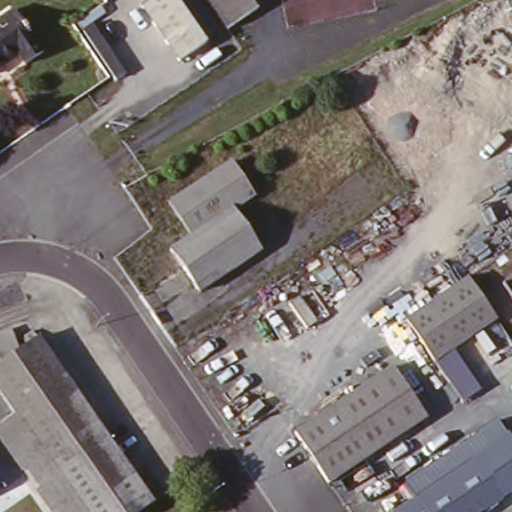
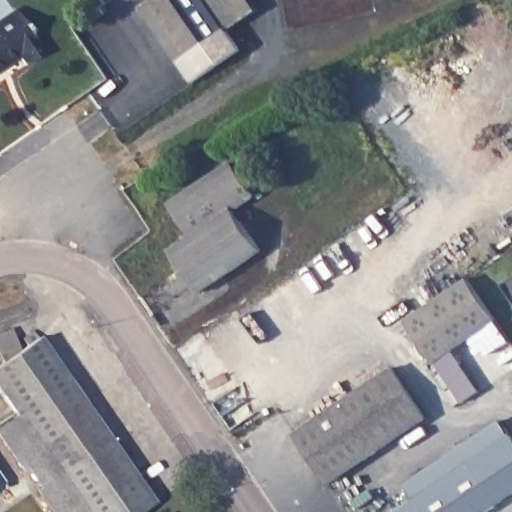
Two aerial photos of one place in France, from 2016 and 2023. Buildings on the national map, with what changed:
unchanged [(141,0),(197,0),(217,32),(205,40),(179,57),(140,1),(141,0)]
unchanged [(251,0),(256,8),(225,30),(205,0),(251,0)]
unchanged [(42,53),(24,66),(17,57),(0,67),(0,16),(15,7),(42,53)]
unchanged [(177,216),(167,201),(230,158),(240,174),(177,216)]
unchanged [(253,194),(235,206),(262,247),(200,291),(172,250),(191,236),(177,216),(240,174),(253,194)]
unchanged [(512,275),(512,294),(503,281),(512,275)]
unchanged [(497,322),(455,352),(434,365),(403,322),(467,277),(497,322)]
unchanged [(0,361),(30,341),(25,334),(35,328),(155,505),(144,512),(85,512),(19,415),(0,387),(0,361)]
unchanged [(434,365),(455,352),(483,393),(464,407),(434,365)]
unchanged [(392,368),(427,418),(330,482),(295,433),(392,368)]
unchanged [(0,432),(0,426),(19,415),(85,512),(53,512),(0,432)]
unchanged [(405,482),(497,421),(507,435),(415,496),(405,482)]
unchanged [(507,435),(512,442),(512,491),(495,502),(495,506),(486,512),(389,512),(415,496),(507,435)]
unchanged [(0,483),(0,479),(2,482),(0,483)]
unchanged [(173,508),(176,512),(167,512),(173,508)]

